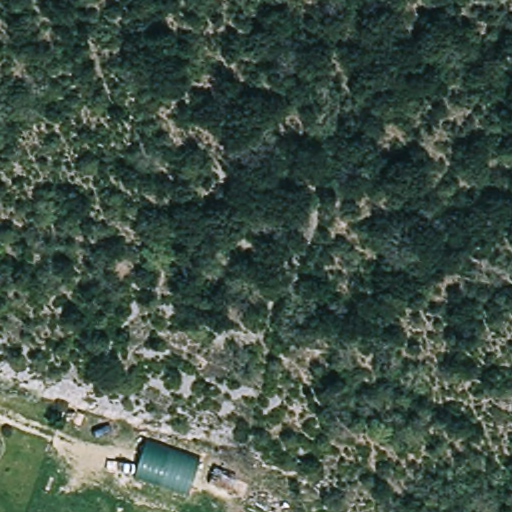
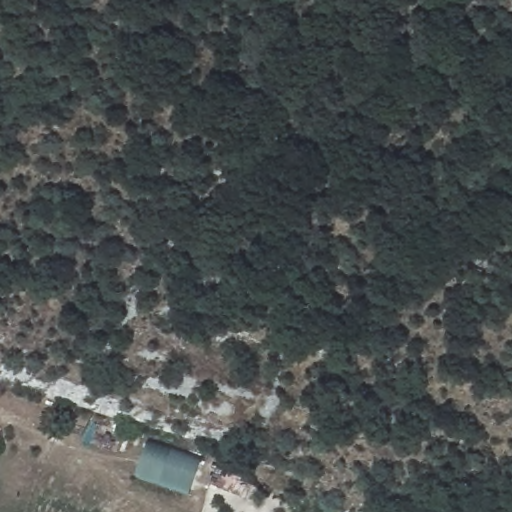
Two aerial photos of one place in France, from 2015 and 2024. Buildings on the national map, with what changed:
unchanged [(190,493),(133,476),(145,441),(203,459),(190,493)]

